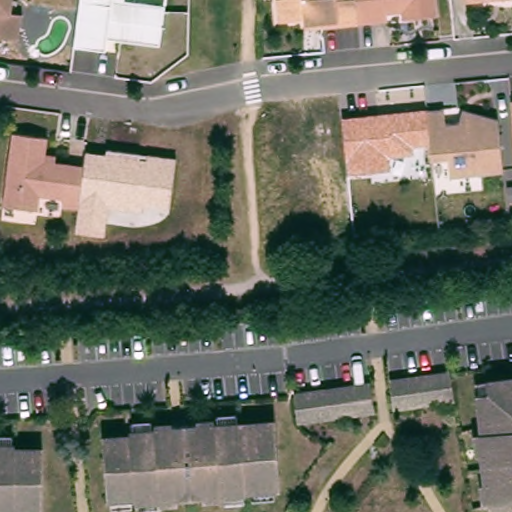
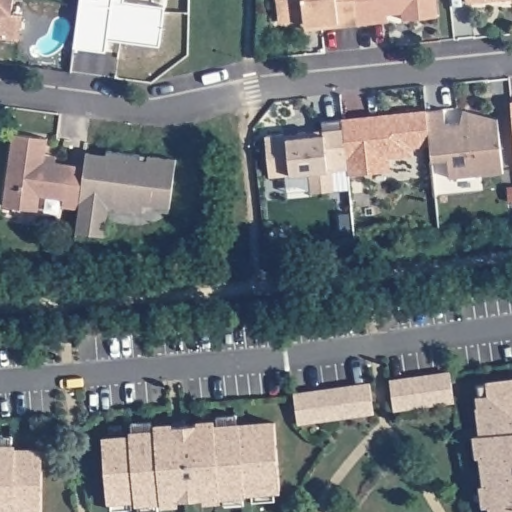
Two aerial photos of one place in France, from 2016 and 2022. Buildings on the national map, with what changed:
unchanged [(13,8),(24,9),(21,34),(0,31),(0,0),(14,0),(13,8)]
unchanged [(108,51),(76,46),(82,0),(168,0),(167,5),(162,45),(119,40),(109,38),(108,51)]
unchanged [(308,23),(308,18),(281,21),(279,0),(358,0),(360,23),(340,25),(309,28),(308,23)]
unchanged [(440,15),(405,19),(404,11),(375,14),(376,22),(360,23),(358,0),(438,0),(440,15)]
unchanged [(468,0),(478,0),(468,1),(468,0)]
unchanged [(341,119),(425,110),(444,109),(446,126),(457,125),(462,110),(498,120),(504,172),(448,179),(446,161),(431,162),(429,146),(412,147),(413,156),(389,158),(389,170),(347,174),(341,119)]
new [(310,172),(292,173),(270,176),(266,135),(287,132),(287,136),(325,134),(324,120),(341,119),(346,169),(332,170),(335,189),(312,192),(310,172)]
unchanged [(49,137),(48,152),(59,154),(58,160),(87,164),(81,206),(66,206),(67,198),(42,192),(40,210),(5,202),(16,132),(49,137)]
unchanged [(84,152),(104,154),(105,149),(175,159),(169,210),(145,207),(144,212),(107,209),(104,235),(75,232),(78,206),(81,206),(87,164),(83,164),(84,152)]
unchanged [(460,400),(399,408),(396,381),(456,373),(460,400)]
unchanged [(489,500),(488,479),(491,478),(488,451),(483,451),(483,450),(481,429),(488,428),(485,400),(487,400),(485,388),(484,377),(493,376),(512,374),(512,512),(499,512),(497,498),(489,500)]
unchanged [(376,379),(380,406),(303,417),(300,390),(376,379)]
unchanged [(144,508),(144,497),(141,497),(141,493),(138,493),(138,504),(118,506),(117,496),(113,496),(109,433),(136,432),(136,428),(138,427),(138,417),(158,416),(158,426),(161,426),(161,421),(221,417),(221,421),(223,421),(222,411),(243,409),(244,420),(281,417),(286,484),(280,485),(281,495),(259,497),(258,487),(252,487),(252,488),(249,489),(250,500),(230,501),(229,491),(226,491),(227,495),(209,496),(209,493),(184,495),(184,497),(167,499),(166,496),(164,496),(165,506),(144,508)]
unchanged [(18,431),(18,441),(21,441),(21,445),(49,445),(48,507),(45,507),(45,512),(25,512),(25,507),(20,507),(20,511),(18,511),(18,512),(0,512),(0,431),(18,431)]

